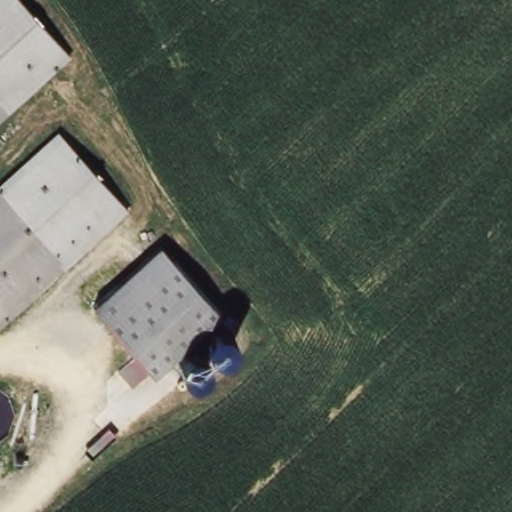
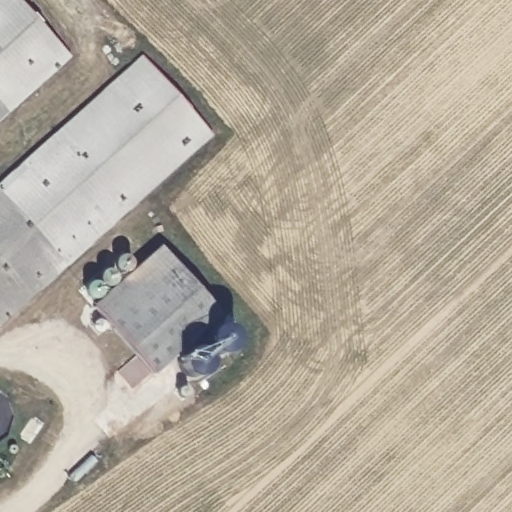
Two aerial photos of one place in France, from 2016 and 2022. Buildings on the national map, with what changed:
unchanged [(73,52),(0,119),(0,0),(25,0),(73,52)]
new [(56,130),(141,54),(214,134),(129,212),(56,130)]
unchanged [(129,212),(0,326),(0,182),(56,130),(129,212)]
unchanged [(94,303),(163,243),(227,312),(155,372),(94,303)]
unchanged [(217,355),(213,353),(209,349),(207,347),(206,342),(206,337),(208,333),(210,330),(214,328),(218,326),(223,326),(228,327),(230,330),(232,333),(234,338),(234,342),(232,348),(229,352),(224,355),(217,355)]
unchanged [(209,362),(208,368),(207,372),(204,375),(199,377),(192,378),(187,377),(183,374),(180,370),(179,365),(180,360),(183,356),(188,352),(192,351),(198,351),(203,353),(205,356),(209,362)]

